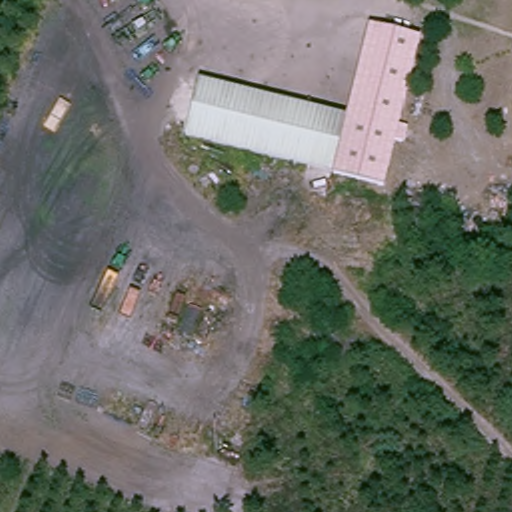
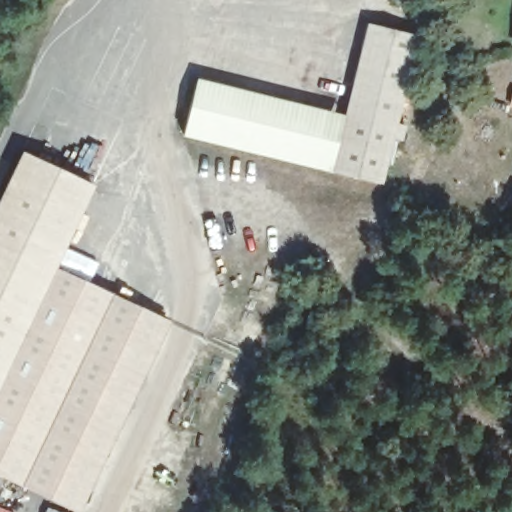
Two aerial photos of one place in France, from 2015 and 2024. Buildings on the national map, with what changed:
unchanged [(332,175),(367,25),(421,37),(384,186),(332,175)]
unchanged [(344,120),(329,175),(185,136),(200,80),(344,120)]
new [(55,268),(170,320),(80,512),(77,512),(0,475),(0,199),(22,151),(94,186),(55,268)]

